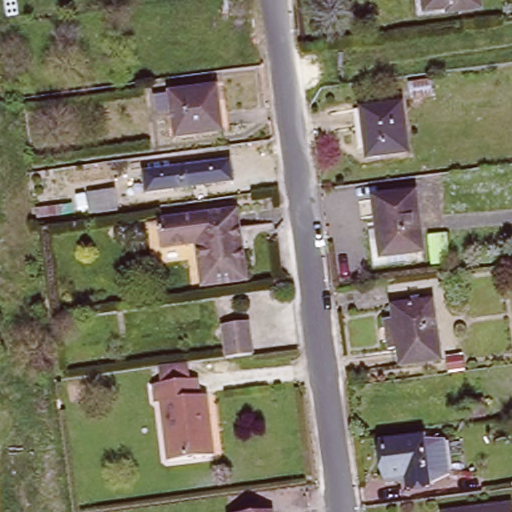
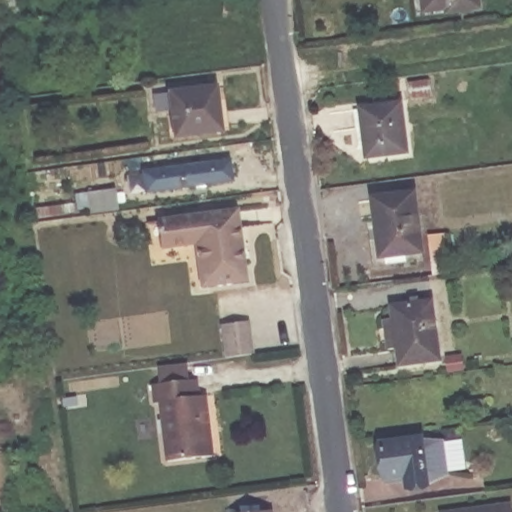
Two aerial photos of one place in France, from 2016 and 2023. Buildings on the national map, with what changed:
unchanged [(428,1),(427,0),(438,0),(428,1)]
unchanged [(449,2),(449,0),(468,0),(449,2)]
unchanged [(432,95),(411,97),(409,83),(430,80),(432,95)]
unchanged [(221,127),(174,134),(171,107),(156,109),(153,92),(216,83),(221,127)]
unchanged [(408,150),(368,156),(361,108),(401,102),(408,150)]
unchanged [(229,162),(231,182),(145,193),(143,173),(229,162)]
unchanged [(118,212),(91,216),(88,194),(115,190),(118,212)]
unchanged [(422,251),(381,257),(373,198),(414,192),(422,251)]
unchanged [(246,280),(202,286),(196,243),(161,248),(156,222),(236,211),(246,280)]
unchanged [(384,314),(393,313),(392,300),(432,295),(440,354),(399,360),(397,342),(388,343),(384,314)]
unchanged [(221,321),(248,318),(253,351),(252,350),(225,354),(221,321)]
unchanged [(464,366),(448,368),(446,352),(461,350),(464,366)]
unchanged [(202,397),(206,396),(211,436),(214,457),(168,462),(161,404),(154,405),(152,386),(161,385),(159,368),(186,365),(188,381),(198,380),(200,397),(202,397)]
unchanged [(401,475),(379,477),(376,442),(418,438),(441,439),(446,473),(424,483),(402,487),(401,475)]
unchanged [(512,507),(512,512),(443,512),(512,502),(512,507)]
unchanged [(272,512),(231,512),(271,506),(272,512)]

